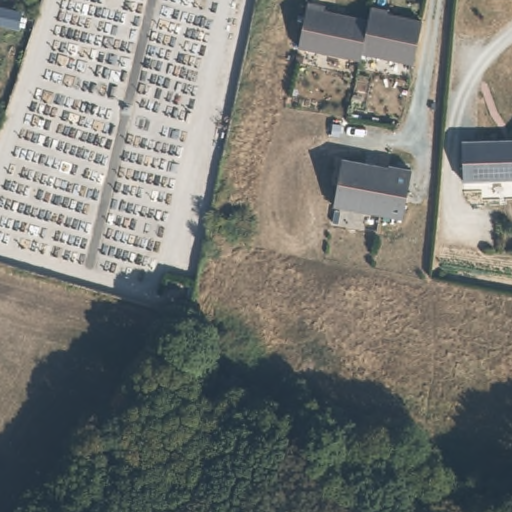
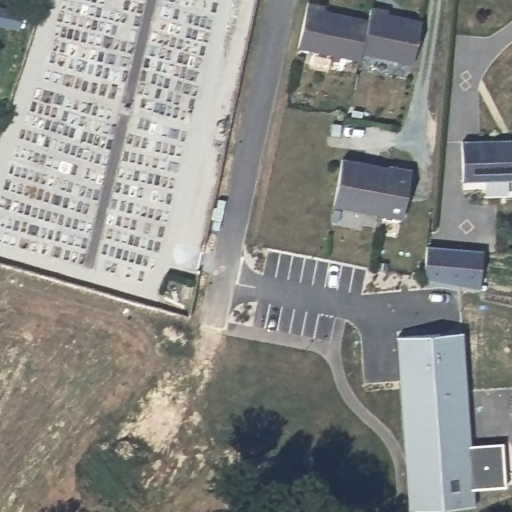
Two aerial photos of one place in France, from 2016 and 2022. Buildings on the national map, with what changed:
unchanged [(361,55),(302,41),(312,0),(328,0),(328,6),(370,15),(362,47),(361,55)]
unchanged [(373,1),(389,4),(389,9),(422,17),(413,59),(362,47),(370,15),(373,1)]
unchanged [(512,178),(461,178),(462,137),(512,137),(512,178)]
unchanged [(332,204),(341,157),(388,167),(378,214),(332,204)]
unchanged [(388,167),(388,165),(410,169),(400,218),(378,214),(388,167)]
new [(423,279),(425,245),(484,250),(481,290),(423,279)]
new [(474,489),(476,506),(409,511),(396,336),(463,331),(471,445),(503,443),(506,487),(474,489)]

